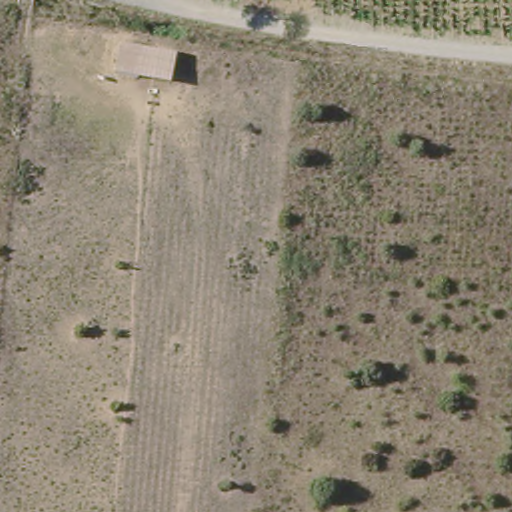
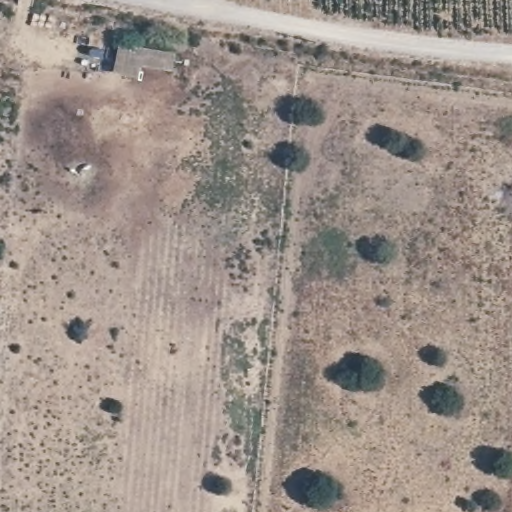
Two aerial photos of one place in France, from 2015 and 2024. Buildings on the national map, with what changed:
unchanged [(108,70),(115,41),(171,51),(166,81),(108,70)]

